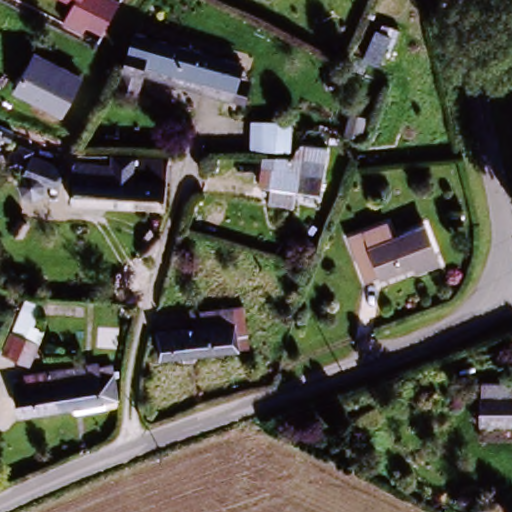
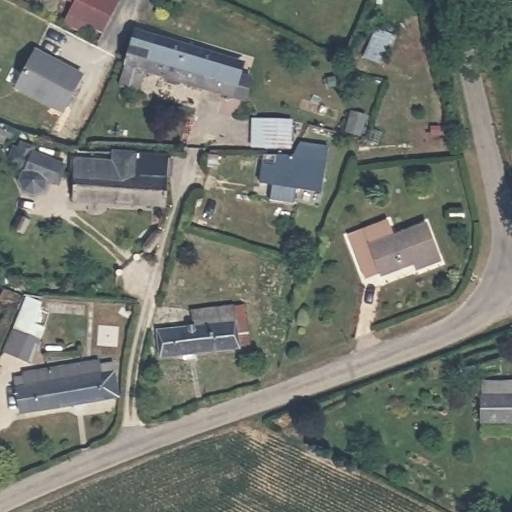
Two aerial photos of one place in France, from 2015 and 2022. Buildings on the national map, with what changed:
unchanged [(87,27),(65,18),(74,1),(71,0),(102,0),(87,27)]
unchanged [(361,60),(371,29),(392,35),(380,67),(361,60)]
unchanged [(125,41),(238,75),(230,103),(143,77),(137,99),(115,91),(122,71),(117,68),(125,41)]
unchanged [(10,95),(32,50),(82,73),(60,114),(10,95)]
unchanged [(252,120),(292,120),(292,151),(251,149),(252,120)]
unchanged [(68,188),(49,180),(46,191),(40,197),(28,195),(23,189),(23,183),(24,175),(5,164),(17,146),(70,162),(68,188)]
unchanged [(67,206),(68,188),(70,162),(110,163),(110,148),(169,153),(167,211),(67,206)]
unchanged [(267,190),(257,188),(257,163),(293,169),(295,154),(324,159),(318,195),(295,193),(294,209),(264,205),(267,190)]
unchanged [(407,274),(407,266),(359,282),(342,235),(382,219),(387,234),(424,223),(438,264),(407,274)]
unchanged [(0,327),(0,325),(12,327),(19,299),(39,305),(30,328),(42,336),(28,366),(0,352),(0,327)]
unchanged [(155,332),(190,328),(189,313),(240,307),(242,351),(158,360),(155,332)]
unchanged [(12,377),(114,359),(116,409),(72,418),(70,407),(15,416),(12,377)]
unchanged [(480,422),(480,382),(512,382),(512,423),(480,422)]

